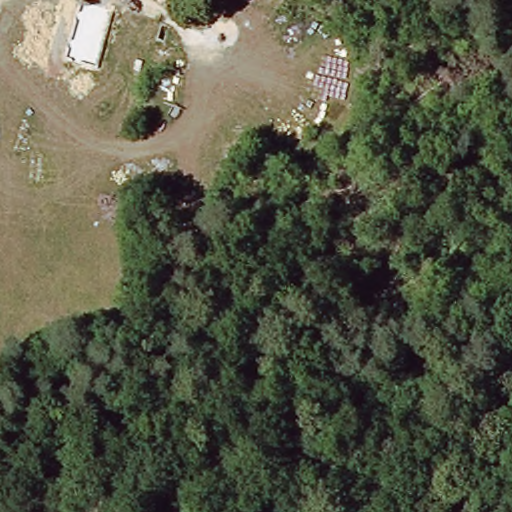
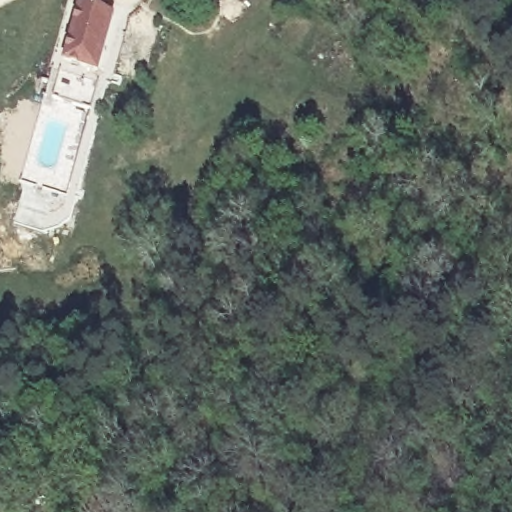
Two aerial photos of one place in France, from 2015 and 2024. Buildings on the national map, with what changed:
new [(114,11),(98,72),(62,62),(78,0),(114,11)]

